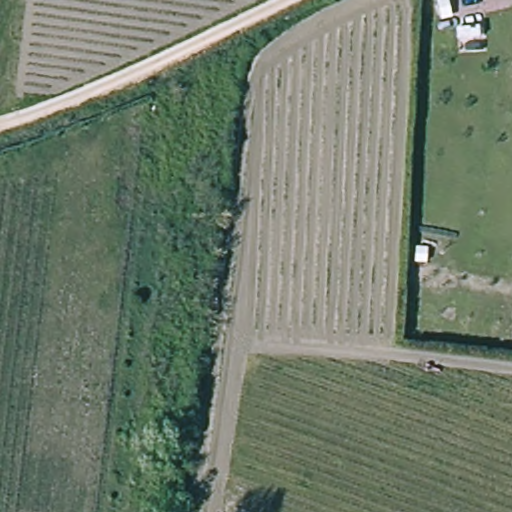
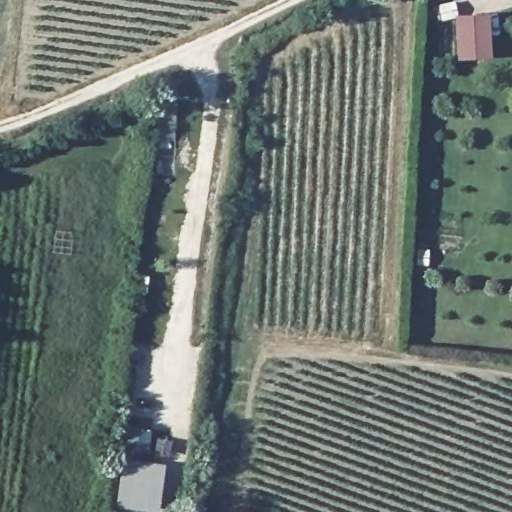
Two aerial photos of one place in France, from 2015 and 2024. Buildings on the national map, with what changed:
new [(487,11),(490,56),(455,58),(452,13),(487,11)]
new [(147,448),(123,446),(125,425),(149,427),(147,448)]
new [(157,511),(117,503),(123,455),(166,462),(157,511)]

